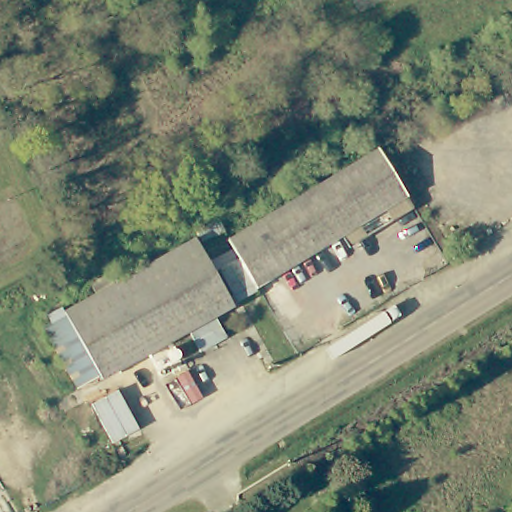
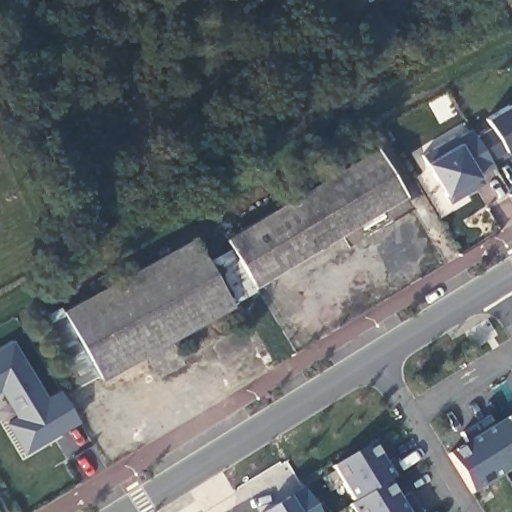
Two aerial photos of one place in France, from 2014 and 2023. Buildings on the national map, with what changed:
new [(490,158),(494,166),(481,175),(483,179),(448,200),(446,194),(425,162),(420,153),(453,132),(455,137),(470,126),(477,136),(491,127),(486,118),(512,104),(512,147),(506,150),(490,158)]
unchanged [(333,238),(244,292),(216,245),(366,154),(395,201),(333,238)]
unchanged [(395,201),(403,214),(340,251),(333,238),(395,201)]
unchanged [(231,314),(100,389),(98,386),(63,323),(62,321),(94,303),(86,291),(103,281),(110,294),(195,247),(231,314)]
unchanged [(98,386),(76,398),(42,336),(63,323),(98,386)]
new [(23,453),(4,423),(15,417),(2,390),(0,391),(0,346),(12,338),(47,396),(60,389),(79,423),(23,453)]
new [(461,433),(488,416),(495,425),(505,419),(512,415),(512,469),(473,493),(451,454),(468,442),(461,433)]
new [(375,442),(388,464),(395,460),(401,473),(395,477),(390,481),(402,500),(411,494),(421,512),(354,512),(350,504),(355,500),(332,466),(375,442)]

